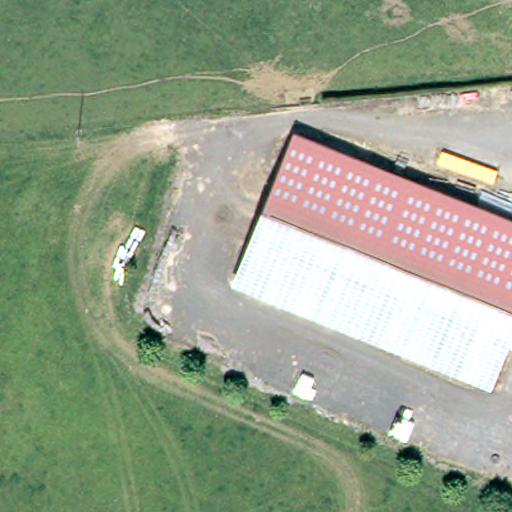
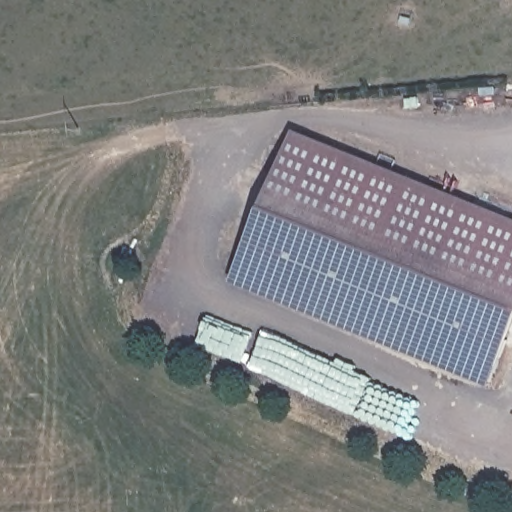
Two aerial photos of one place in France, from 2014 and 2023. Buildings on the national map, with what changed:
unchanged [(239,267),(301,123),(512,212),(512,338),(496,375),(239,267)]

